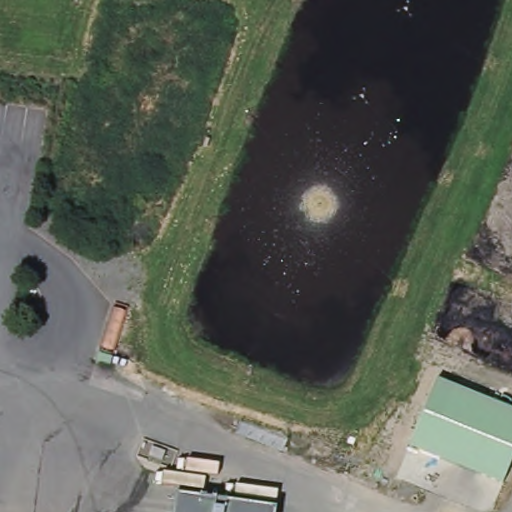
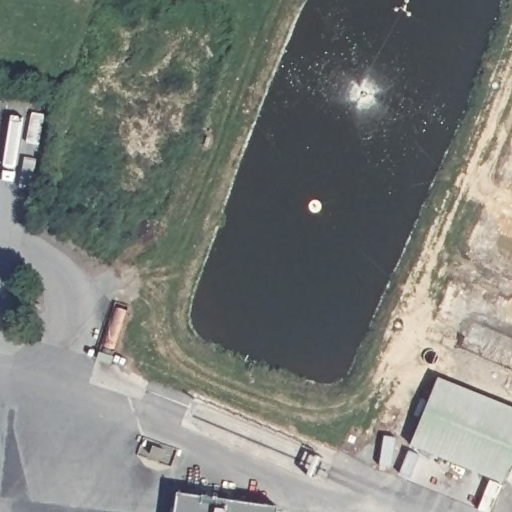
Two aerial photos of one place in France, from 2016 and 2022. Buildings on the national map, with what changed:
unchanged [(512,464),(503,487),(409,448),(439,377),(512,407),(512,464)]
unchanged [(275,512),(173,512),(175,492),(276,505),(275,512)]

